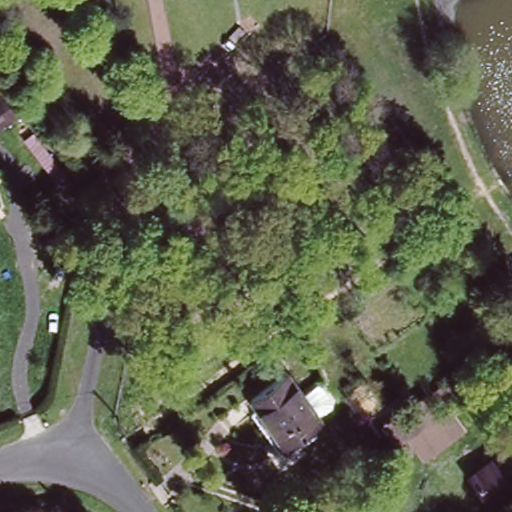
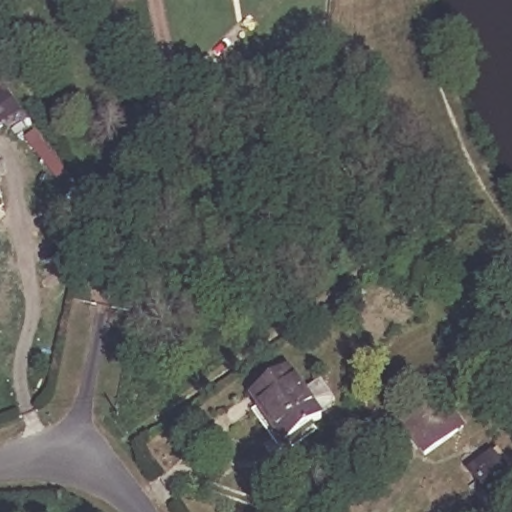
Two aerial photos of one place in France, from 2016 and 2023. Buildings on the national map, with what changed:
unchanged [(18,113),(0,125),(0,95),(4,93),(18,113)]
unchanged [(316,369),(332,392),(316,404),(320,410),(310,418),(314,424),(280,444),(249,400),(258,394),(250,384),(283,360),(299,382),(316,369)]
unchanged [(387,447),(374,429),(403,410),(412,403),(425,420),(431,416),(442,408),(455,424),(443,433),(413,455),(399,438),(387,447)]
unchanged [(471,473),(483,465),(496,456),(512,481),(512,492),(494,505),(477,482),(471,473)]

